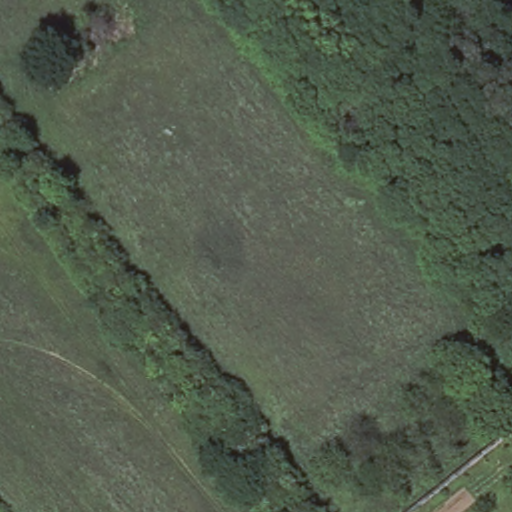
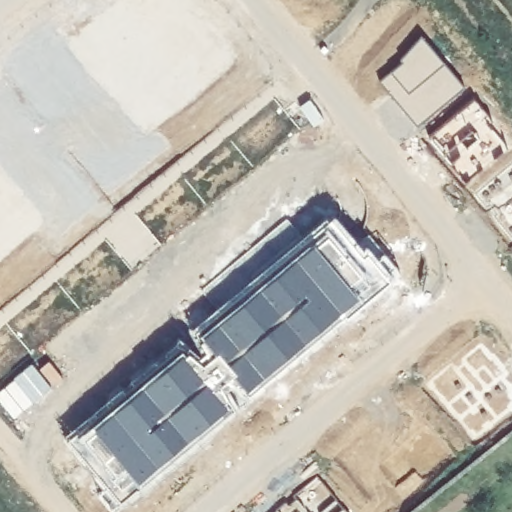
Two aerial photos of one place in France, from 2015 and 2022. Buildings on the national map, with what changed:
new [(405,65),(401,61),(422,38),(465,88),(418,125),(381,83),(405,65)]
new [(475,101),(491,119),(488,121),(508,145),(467,180),(430,137),(475,101)]
new [(512,167),(512,241),(510,242),(476,193),(512,167)]
new [(381,278),(107,509),(53,450),(325,217),(381,278)]
new [(347,512),(277,512),(317,477),(347,512)]

